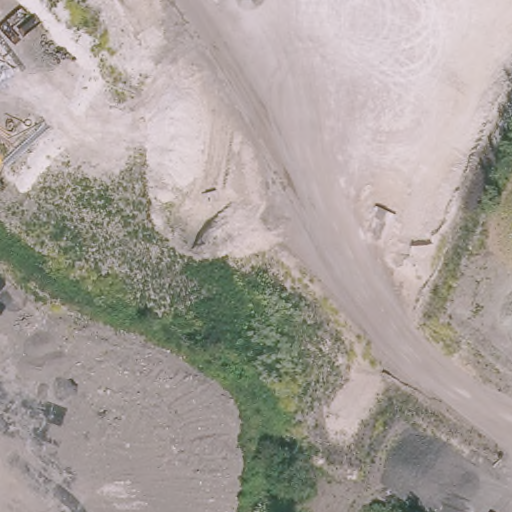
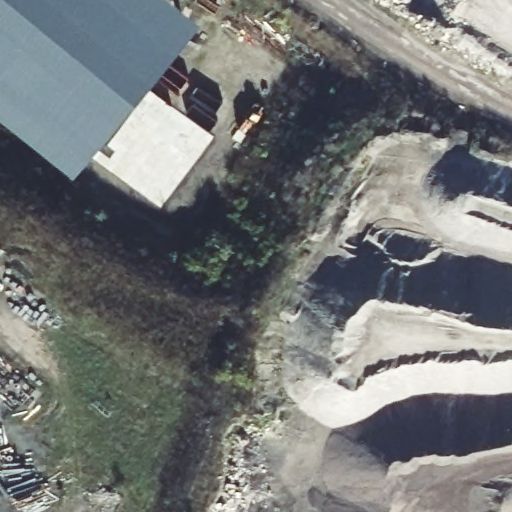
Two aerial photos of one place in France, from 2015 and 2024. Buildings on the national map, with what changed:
new [(84,164),(0,96),(0,0),(214,0),(84,164)]

